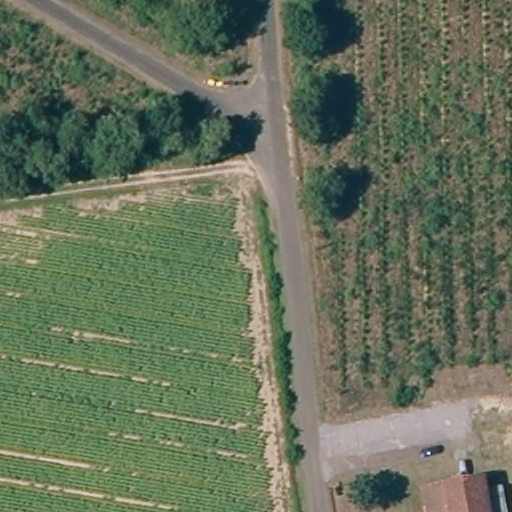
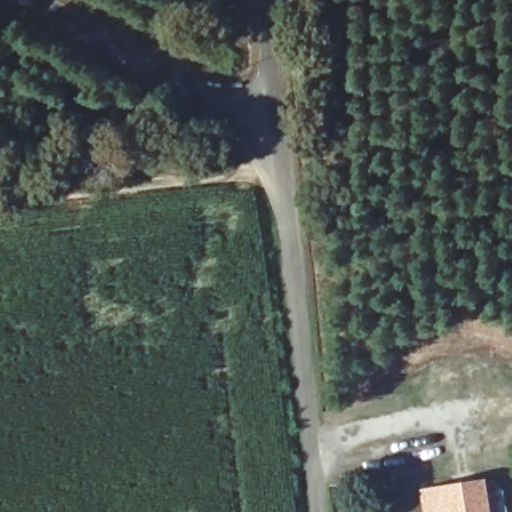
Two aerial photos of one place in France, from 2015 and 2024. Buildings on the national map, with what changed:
unchanged [(444,492),(482,486),(487,512),(447,512),(444,492)]
unchanged [(422,496),(444,492),(447,512),(425,512),(422,496)]

